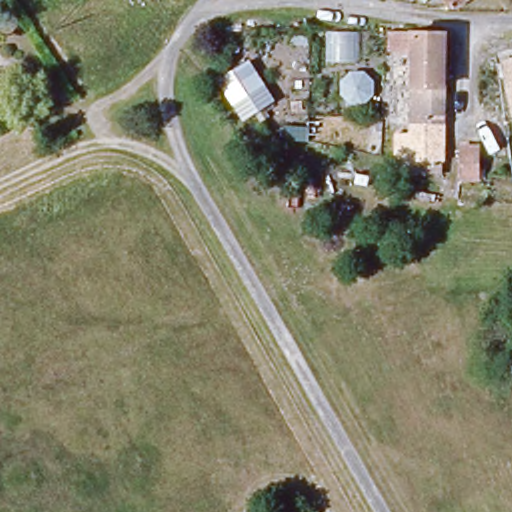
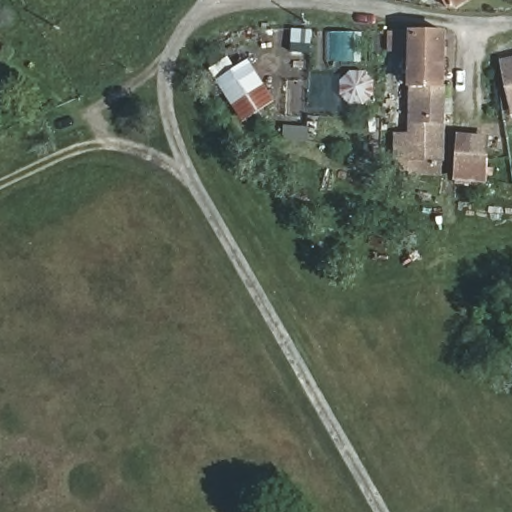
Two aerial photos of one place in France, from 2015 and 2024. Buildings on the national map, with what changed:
unchanged [(460,6),(452,0),(468,0),(460,6)]
unchanged [(409,84),(409,66),(380,67),(379,32),(408,32),(444,32),(443,82),(409,84)]
unchanged [(243,124),(216,81),(249,59),(276,101),(243,124)]
unchanged [(512,65),(512,82),(507,67),(512,65)]
unchanged [(366,106),(351,105),(343,96),(342,81),(351,72),(365,72),(376,82),(375,96),(366,106)]
unchanged [(442,127),(433,128),(410,127),(409,84),(443,82),(442,127)]
unchanged [(398,127),(410,127),(433,128),(434,157),(398,158),(398,127)]
unchanged [(478,182),(460,182),(459,147),(477,145),(478,182)]

